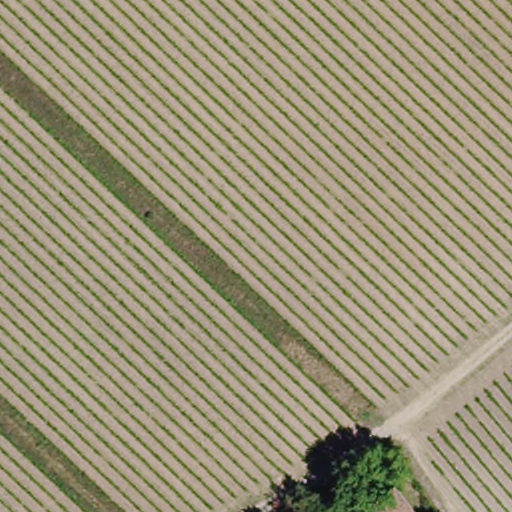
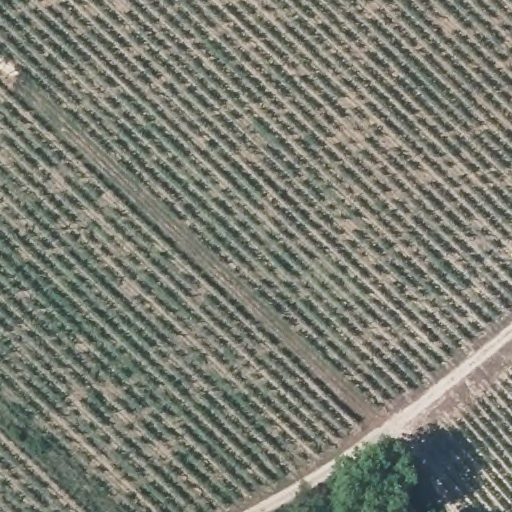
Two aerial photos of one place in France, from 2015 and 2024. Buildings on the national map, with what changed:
unchanged [(407,512),(371,512),(369,510),(390,491),(407,512)]

